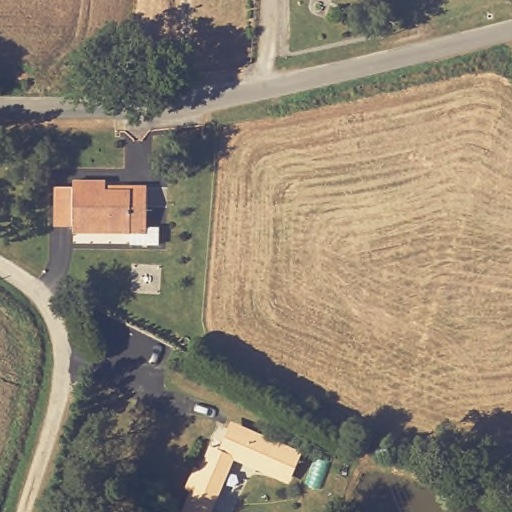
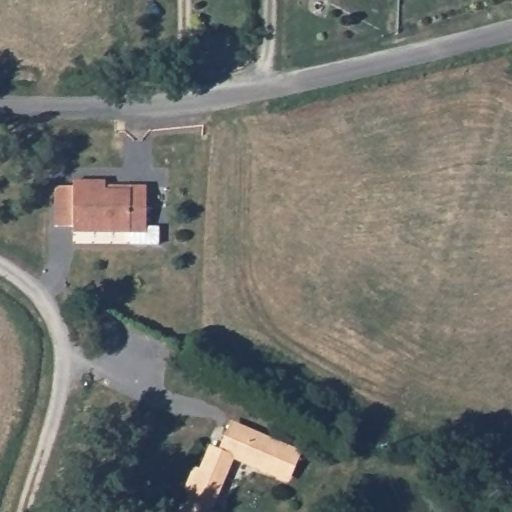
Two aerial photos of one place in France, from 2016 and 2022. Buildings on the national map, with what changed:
unchanged [(151,244),(135,243),(135,232),(78,232),(78,227),(59,227),(60,187),(78,187),(78,182),(111,182),(110,187),(134,187),(151,188),(151,244)]
unchanged [(303,453),(290,485),(233,461),(212,512),(182,512),(189,494),(184,492),(192,469),(199,471),(208,447),(219,452),(231,423),(303,453)]

